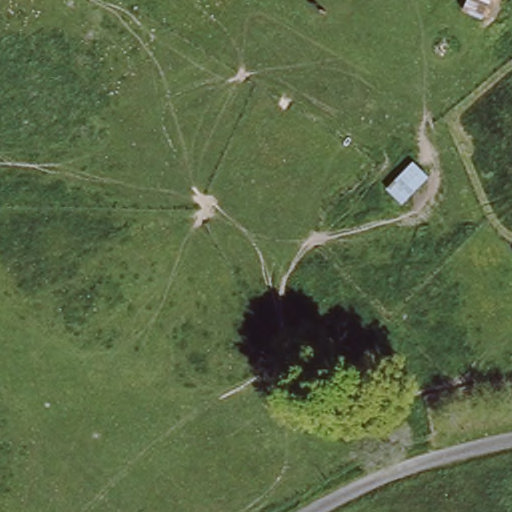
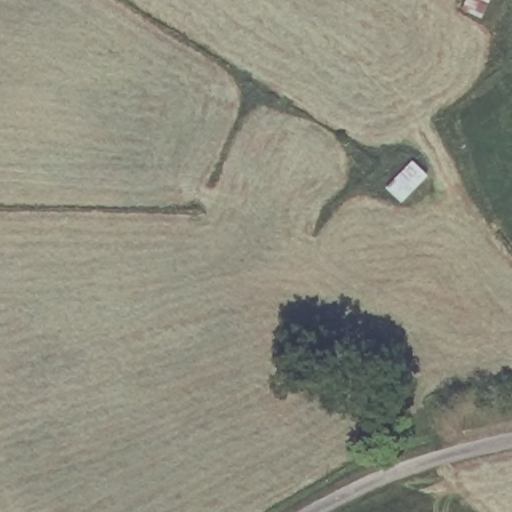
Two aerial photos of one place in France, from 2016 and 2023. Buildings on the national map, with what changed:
unchanged [(462,9),(466,0),(490,0),(482,17),(462,9)]
unchanged [(427,175),(402,203),(387,188),(412,161),(427,175)]

